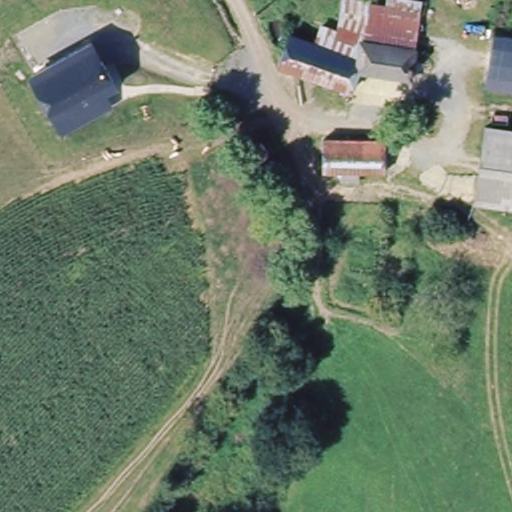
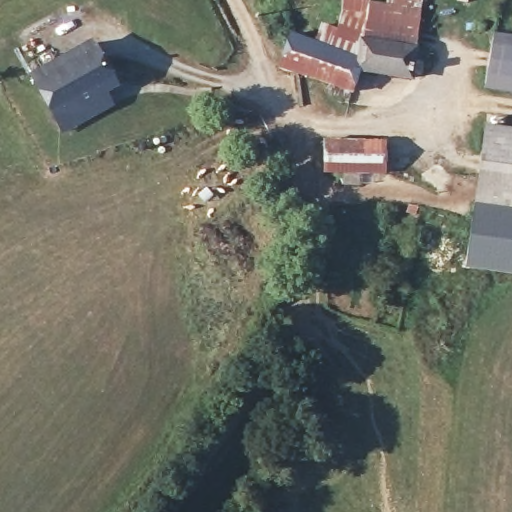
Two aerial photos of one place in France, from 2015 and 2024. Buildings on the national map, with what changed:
unchanged [(320,17),(337,22),(343,0),(390,0),(427,7),(416,56),(361,50),(356,65),(310,49),(320,17)]
unchanged [(487,82),(498,23),(512,25),(512,86),(487,82)]
unchanged [(62,125),(55,112),(32,70),(92,38),(115,80),(103,87),(110,100),(62,125)]
unchanged [(361,80),(353,102),(275,71),(288,41),(310,49),(356,65),(361,50),(416,56),(408,87),(361,80)]
unchanged [(472,201),(485,126),(490,126),(512,130),(512,208),(480,202),(472,201)]
unchanged [(388,171),(328,170),(329,139),(387,139),(388,171)]
new [(480,202),(512,208),(512,274),(465,268),(474,201),(480,202)]

